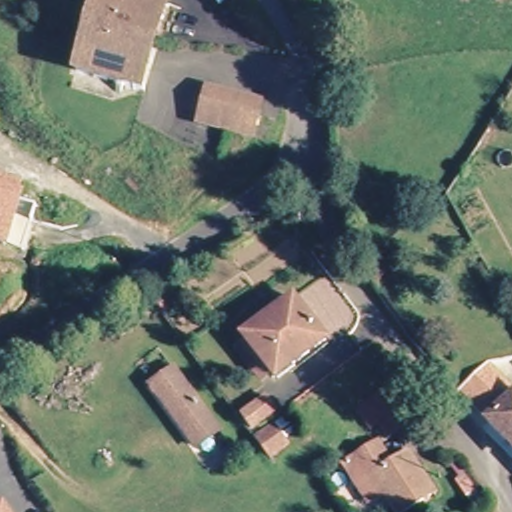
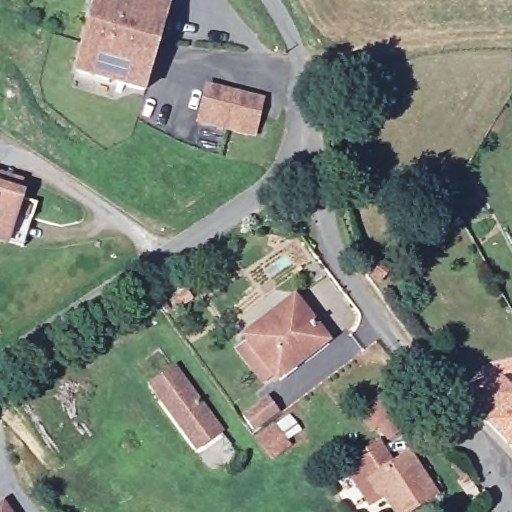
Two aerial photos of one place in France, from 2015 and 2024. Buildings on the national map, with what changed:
unchanged [(163,0),(162,2),(150,49),(89,30),(96,7),(98,0),(163,0)]
unchanged [(140,87),(78,71),(89,30),(150,49),(140,87)]
unchanged [(253,134),(226,129),(200,125),(204,100),(257,109),(253,134)]
unchanged [(25,179),(5,244),(0,243),(0,171),(25,179)]
unchanged [(235,352),(250,342),(245,334),(295,299),(327,341),(278,377),(275,373),(260,384),(235,352)]
unchanged [(175,368),(220,432),(196,448),(152,384),(175,368)]
unchanged [(397,391),(415,415),(389,434),(383,424),(377,428),(367,412),(397,391)]
unchanged [(512,397),(512,444),(488,418),(512,397)]
unchanged [(255,427),(247,415),(267,402),(277,412),(255,427)]
unchanged [(278,427),(293,447),(279,458),(263,439),(278,427)]
unchanged [(368,484),(355,465),(382,445),(397,465),(412,454),(442,494),(418,512),(400,512),(390,497),(383,502),(368,484)]
unchanged [(2,512),(0,512),(0,510),(2,512)]

